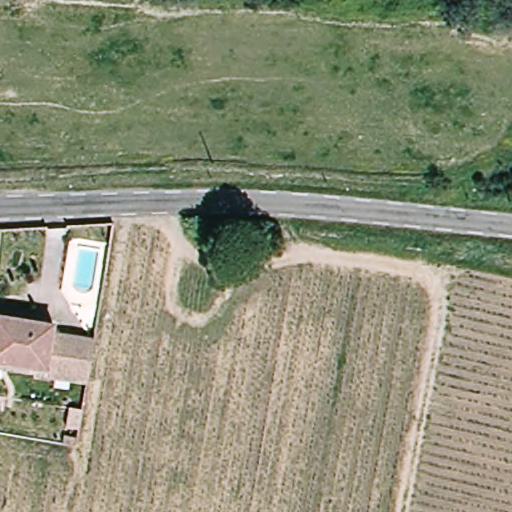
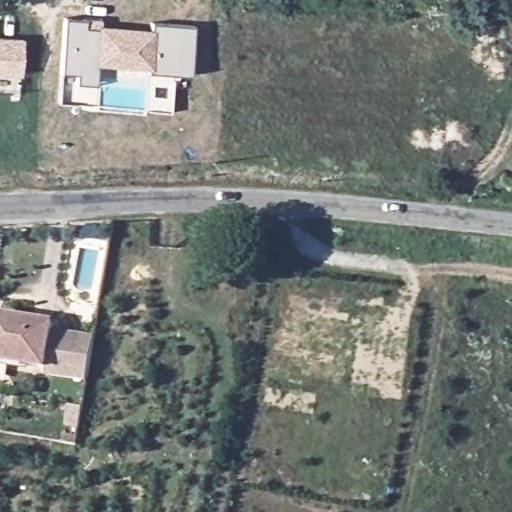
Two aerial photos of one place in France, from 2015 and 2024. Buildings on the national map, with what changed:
new [(86,21),(87,19),(103,20),(101,26),(152,30),(153,24),(194,27),(190,76),(148,73),(148,70),(98,65),(95,85),(75,83),(76,74),(60,72),(65,19),(86,21)]
new [(24,39),(21,76),(0,75),(0,37),(24,39)]
unchanged [(45,375),(46,368),(0,361),(0,315),(54,323),(52,332),(95,339),(96,339),(89,381),(45,375)]
unchanged [(84,410),(81,427),(68,425),(71,407),(71,405),(84,407),(84,410)]

